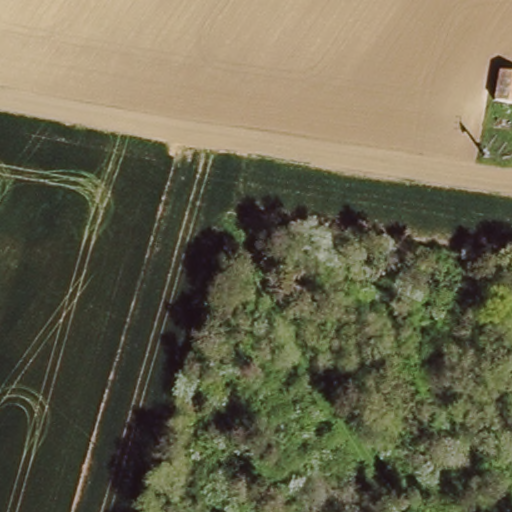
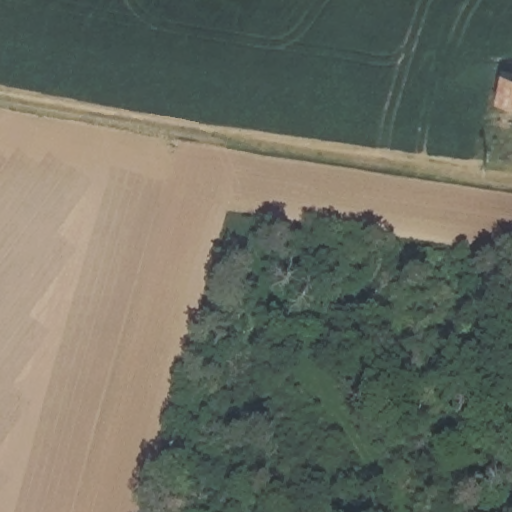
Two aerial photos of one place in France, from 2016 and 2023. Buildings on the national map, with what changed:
unchanged [(512,70),(512,99),(497,98),(498,69),(512,70)]

